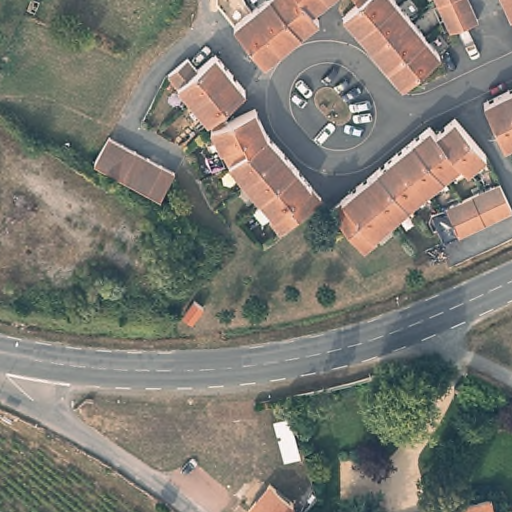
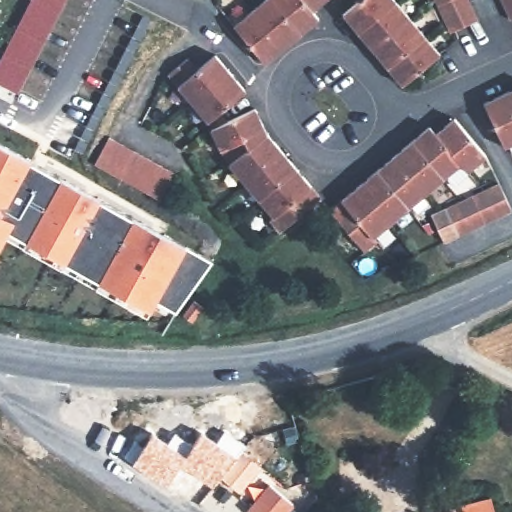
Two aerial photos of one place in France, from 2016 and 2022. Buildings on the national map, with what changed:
new [(65,0),(18,91),(0,82),(0,56),(29,0),(65,0)]
unchanged [(272,0),(300,34),(291,41),(283,49),(252,11),(265,0),(272,0)]
unchanged [(303,0),(312,11),(319,18),(300,34),(272,0),(303,0)]
unchanged [(303,0),(324,0),(312,11),(303,0)]
unchanged [(359,32),(359,33),(343,14),(358,1),(358,0),(395,0),(396,1),(359,32)]
unchanged [(455,30),(450,32),(435,0),(469,0),(478,19),(455,30)]
unchanged [(504,6),(502,0),(512,0),(512,19),(511,20),(504,6)]
unchanged [(359,32),(396,1),(410,19),(373,50),(359,33),(359,32)]
unchanged [(252,11),(283,49),(265,63),(234,26),(252,11)]
unchanged [(410,19),(425,36),(388,67),(373,50),(410,19)]
unchanged [(425,36),(439,53),(403,85),(388,67),(425,36)]
unchanged [(188,58),(198,69),(215,54),(231,73),(194,104),(169,74),(188,58)]
unchanged [(231,73),(245,90),(209,121),(194,104),(231,73)]
unchanged [(512,89),(512,109),(504,93),(512,89)]
unchanged [(512,109),(512,143),(508,145),(504,146),(484,103),(504,93),(512,109)]
unchanged [(255,108),(267,133),(229,164),(222,150),(211,129),(255,108)]
unchanged [(454,118),(486,155),(467,171),(461,163),(436,133),(454,118)]
unchanged [(429,126),(436,133),(461,163),(444,178),(412,140),(429,126)]
unchanged [(267,133),(282,151),(244,182),(229,164),(267,133)]
unchanged [(175,173),(160,200),(94,164),(109,137),(175,173)]
unchanged [(412,140),(444,178),(426,193),(394,155),(412,140)]
new [(155,300),(149,309),(146,315),(94,285),(21,246),(5,236),(0,247),(0,142),(185,244),(213,260),(175,312),(155,300)]
unchanged [(282,151),(296,168),(259,199),(244,182),(282,151)]
unchanged [(394,155),(426,193),(409,207),(377,170),(394,155)]
unchanged [(296,168),(321,197),(280,232),(269,220),(273,216),(259,199),(296,168)]
unchanged [(377,170),(409,207),(391,222),(360,184),(377,170)]
unchanged [(499,183),(512,210),(444,242),(431,215),(499,183)]
unchanged [(330,209),(360,184),(391,222),(374,237),(377,240),(364,251),(342,224),(329,210),(330,209)]
unchanged [(194,297),(203,304),(192,318),(183,311),(194,297)]
unchanged [(290,415),(300,457),(282,462),(270,421),(290,415)]
unchanged [(294,501),(284,512),(250,512),(247,510),(270,482),(278,488),(294,501)]
unchanged [(453,507),(492,497),(495,512),(454,512),(453,507)]

